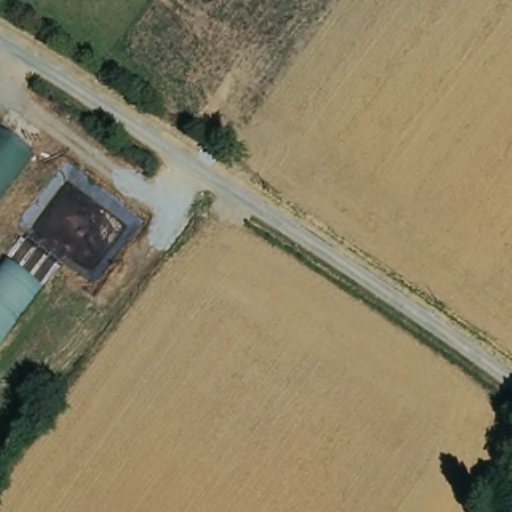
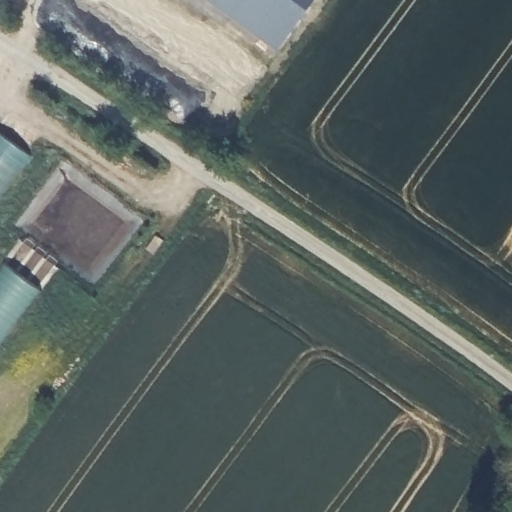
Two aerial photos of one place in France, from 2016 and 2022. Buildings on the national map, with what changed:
new [(207,0),(313,0),(276,50),(207,0)]
unchanged [(1,130),(38,159),(0,207),(0,131),(1,130)]
unchanged [(8,266),(44,294),(0,349),(0,276),(8,266)]

